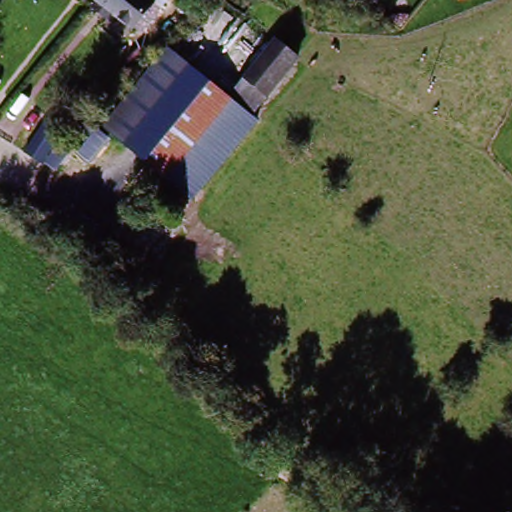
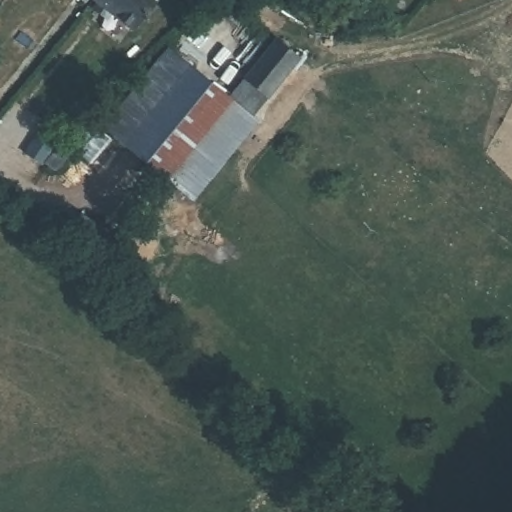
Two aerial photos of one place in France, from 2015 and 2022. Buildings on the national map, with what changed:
unchanged [(77,0),(86,0),(81,5),(77,0)]
unchanged [(95,5),(89,0),(144,0),(149,5),(127,31),(108,15),(102,21),(90,13),(95,5)]
unchanged [(236,72),(238,70),(264,40),(284,56),(257,90),(236,72)]
unchanged [(162,167),(103,120),(164,45),(222,90),(162,167)]
unchanged [(244,105),(248,109),(186,186),(162,167),(222,90),(236,72),(257,90),(244,105)]
unchanged [(28,154),(48,125),(65,135),(43,165),(28,154)]

